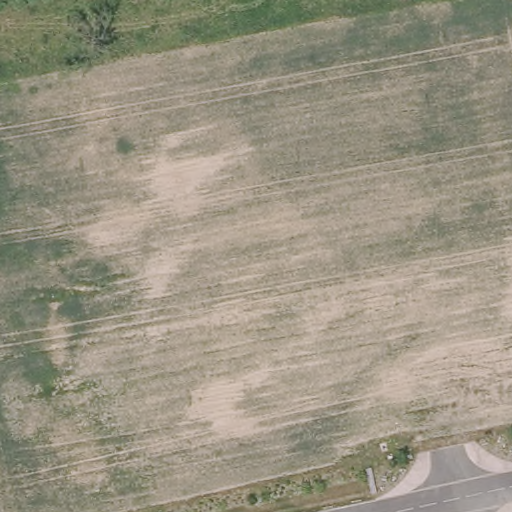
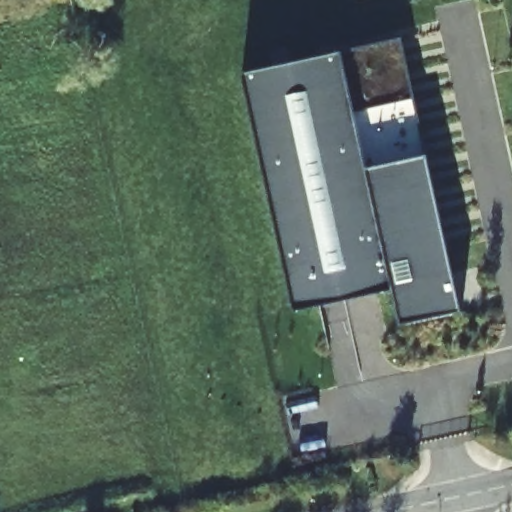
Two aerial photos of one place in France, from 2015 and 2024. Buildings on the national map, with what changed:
new [(463,317),(406,331),(397,294),(296,316),(246,75),(401,41),(463,317)]

